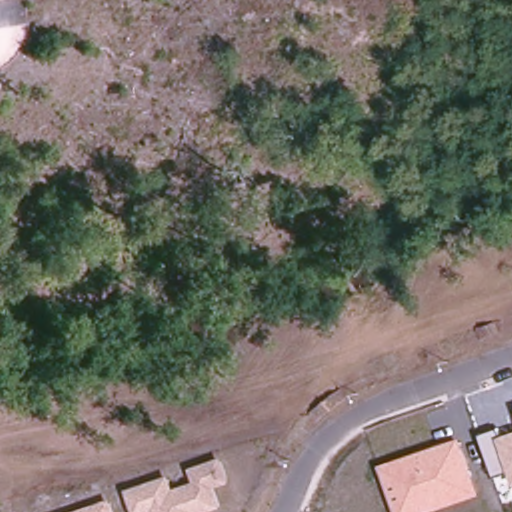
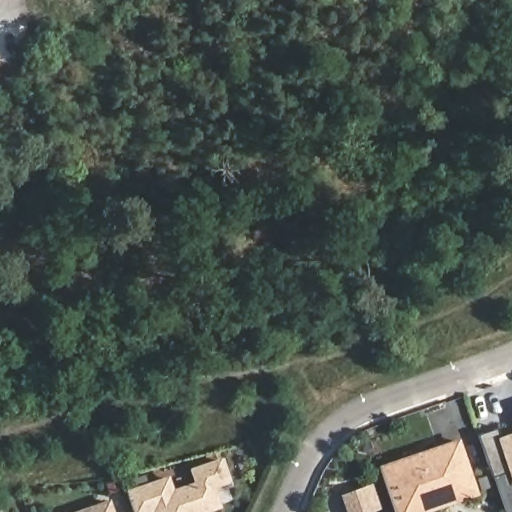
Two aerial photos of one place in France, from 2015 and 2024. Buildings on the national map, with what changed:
unchanged [(509,474),(494,479),(481,435),(499,430),(501,438),(512,434),(512,485),(509,474)]
unchanged [(433,512),(395,512),(379,466),(462,439),(481,496),(433,512)]
unchanged [(230,486),(217,490),(224,508),(210,512),(133,512),(126,491),(170,476),(174,489),(194,483),(189,468),(220,458),(230,486)]
new [(375,488),(382,508),(376,509),(368,512),(353,512),(348,498),(369,490),(375,488)]
unchanged [(112,500),(116,512),(77,512),(112,500)]

